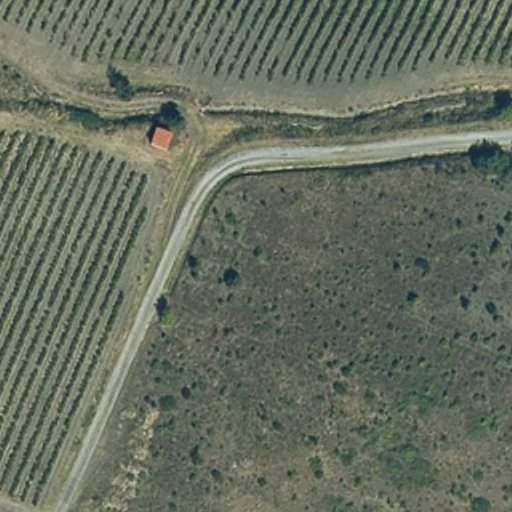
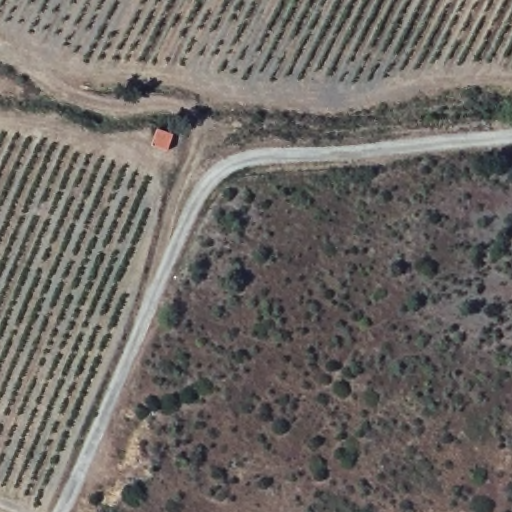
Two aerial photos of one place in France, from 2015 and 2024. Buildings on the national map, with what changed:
unchanged [(171,132),(167,150),(150,144),(154,127),(171,132)]

